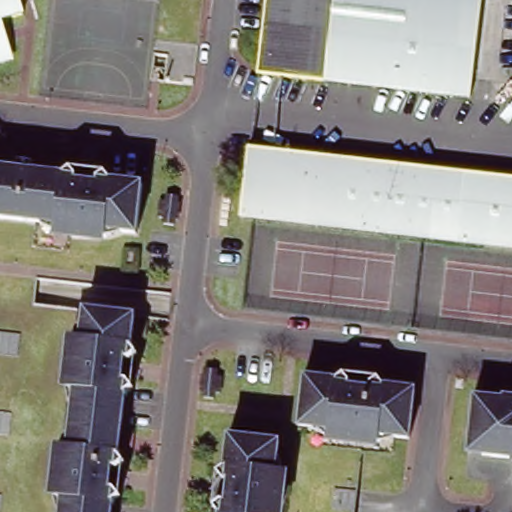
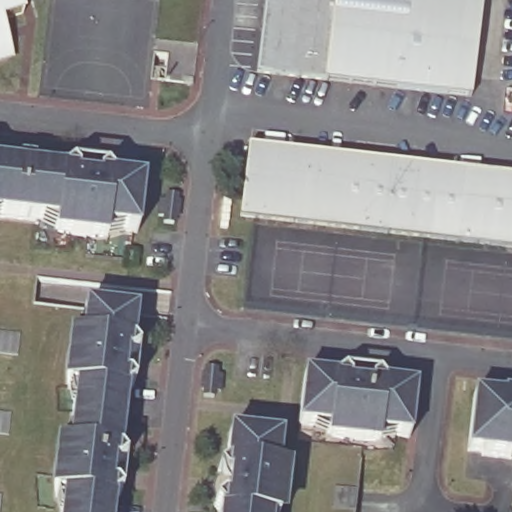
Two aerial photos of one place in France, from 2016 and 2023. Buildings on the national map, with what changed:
unchanged [(0,10),(0,0),(21,0),(21,3),(0,10)]
unchanged [(469,104),(427,98),(258,77),(267,0),(483,0),(478,36),(469,104)]
unchanged [(0,43),(0,10),(9,40),(0,43)]
unchanged [(276,147),(419,164),(512,174),(512,250),(412,239),(256,220),(240,217),(241,210),(249,145),(276,147)]
unchanged [(109,239),(55,232),(56,222),(0,216),(0,167),(58,174),(58,171),(66,172),(72,167),(78,174),(100,177),(105,171),(109,177),(116,179),(116,181),(144,185),(138,233),(111,230),(109,239)]
unchanged [(70,353),(73,331),(81,333),(85,305),(137,311),(135,338),(137,339),(136,346),(140,351),(134,352),(133,353),(70,353)]
unchanged [(136,386),(131,390),(131,395),(129,395),(123,449),(125,449),(125,454),(128,459),(122,462),(118,485),(123,495),(119,499),(119,504),(116,503),(116,512),(61,512),(63,496),(54,495),(59,441),(68,442),(75,386),(66,385),(70,353),(133,353),(131,378),(136,386)]
unchanged [(409,440),(383,436),(381,445),(327,438),(329,428),(301,425),(306,376),(330,380),(331,375),(342,377),(346,373),(350,380),(376,383),(381,378),(384,383),(393,384),(392,387),(416,390),(409,440)]
unchanged [(469,450),(475,394),(502,397),(502,391),(512,393),(512,455),(469,450)]
unchanged [(218,509),(214,504),(221,500),(224,473),(218,470),(223,466),(224,460),(226,460),(229,437),(282,444),(279,470),(289,471),(284,512),(218,512),(218,509)]

